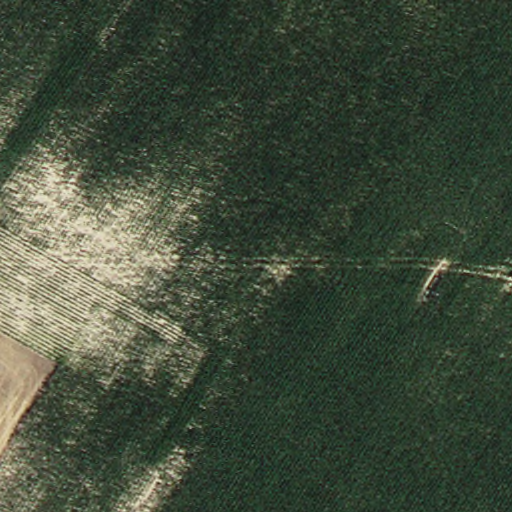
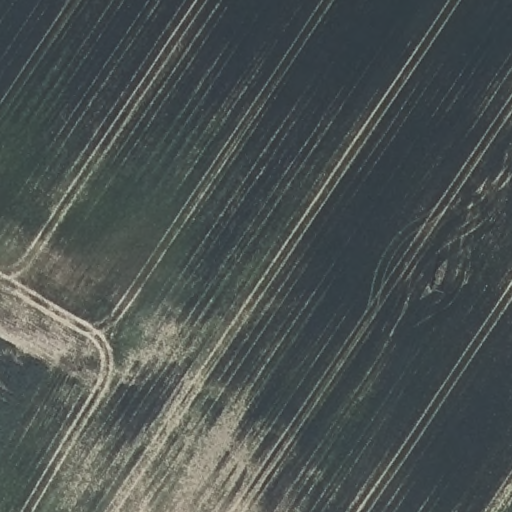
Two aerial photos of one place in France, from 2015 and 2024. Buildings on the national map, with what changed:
[]

